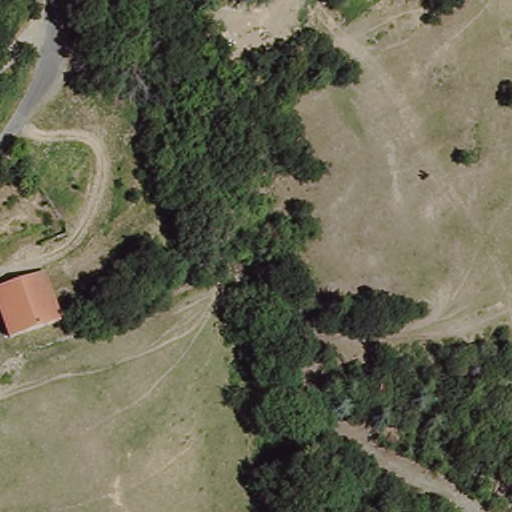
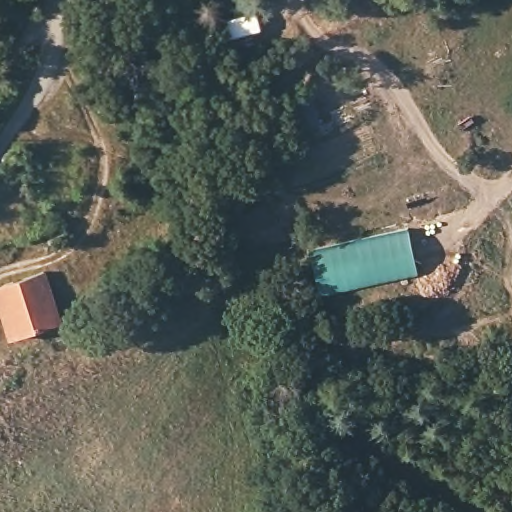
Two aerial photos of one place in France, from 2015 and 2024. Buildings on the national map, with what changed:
new [(419,272),(322,292),(312,253),(409,229),(419,272)]
unchanged [(12,329),(9,322),(0,296),(0,283),(47,268),(60,307),(62,312),(63,317),(12,333),(12,329)]

